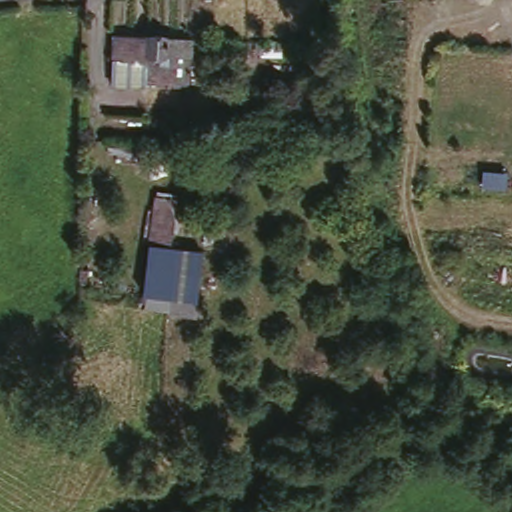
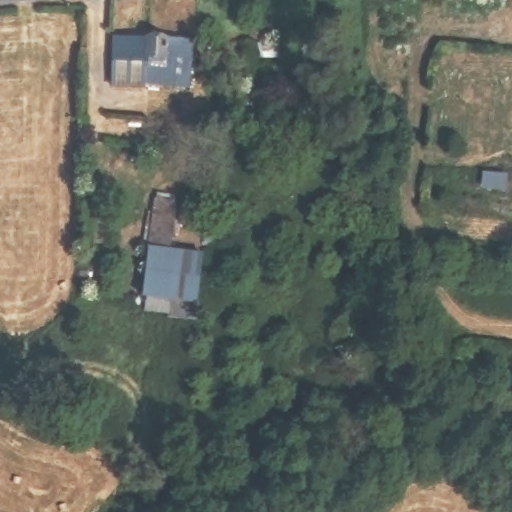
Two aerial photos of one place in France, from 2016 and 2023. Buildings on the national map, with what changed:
unchanged [(117,34),(193,42),(186,88),(146,84),(144,93),(108,89),(117,34)]
unchanged [(173,315),(168,314),(169,299),(143,295),(157,191),(181,195),(178,218),(172,252),(188,253),(209,257),(202,303),(191,303),(190,317),(173,315)]

